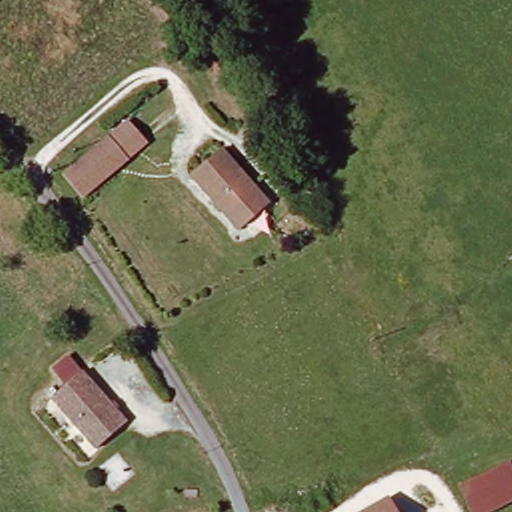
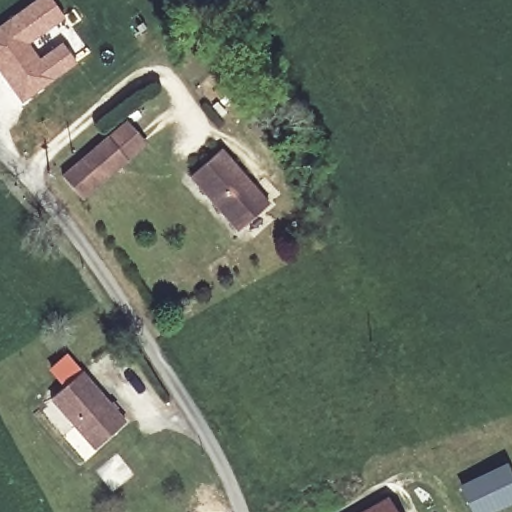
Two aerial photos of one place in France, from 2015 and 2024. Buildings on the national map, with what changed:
new [(52,0),(64,18),(30,44),(40,58),(62,42),(77,63),(22,104),(0,76),(0,24),(34,0),(52,0)]
unchanged [(57,187),(50,178),(98,141),(99,143),(118,128),(129,142),(137,151),(117,166),(116,165),(68,202),(57,187)]
unchanged [(271,201),(242,229),(192,176),(221,149),(271,201)]
unchanged [(100,445),(55,400),(68,387),(54,372),(69,357),(83,372),(127,418),(100,445)]
unchanged [(449,485),(500,463),(512,482),(512,498),(484,512),(465,512),(449,485)]
unchanged [(382,499),(389,512),(356,512),(382,499)]

